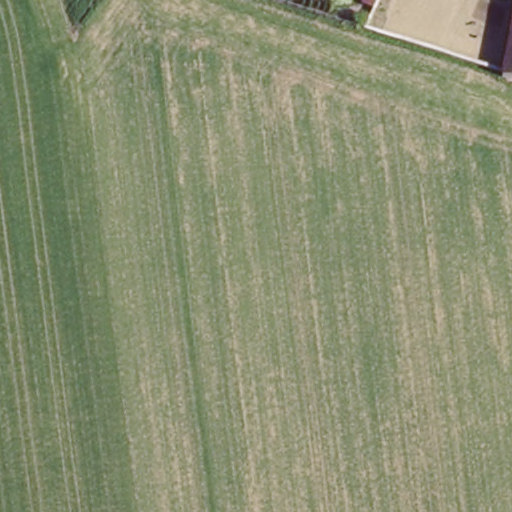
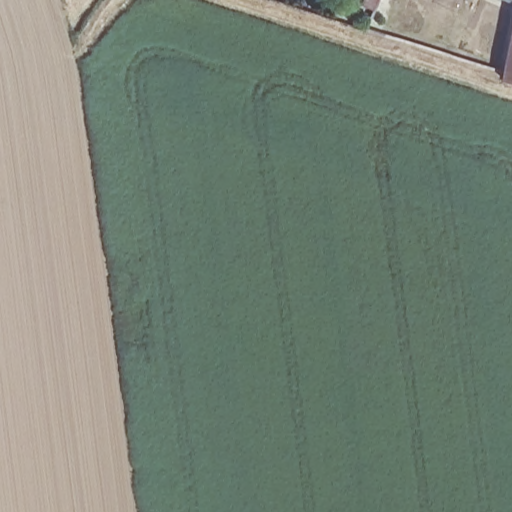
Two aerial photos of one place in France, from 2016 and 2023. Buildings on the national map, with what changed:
unchanged [(512,75),(510,74),(503,72),(512,32),(512,75)]

